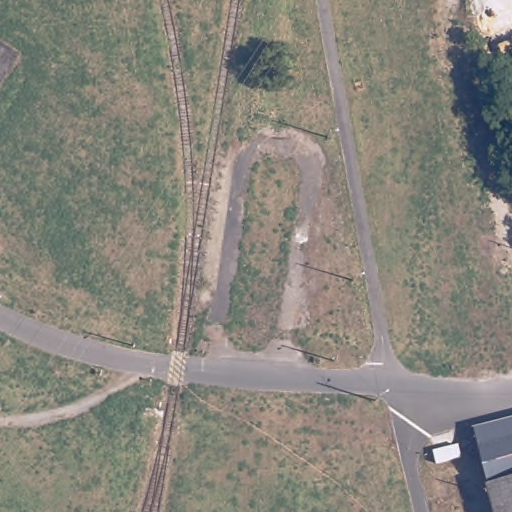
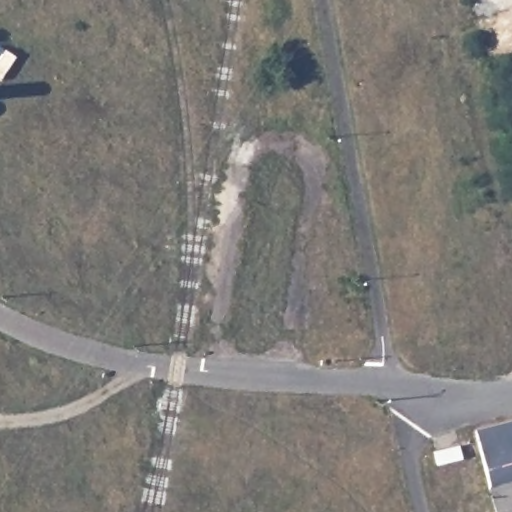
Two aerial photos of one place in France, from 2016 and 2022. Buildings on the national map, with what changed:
unchanged [(475,431),(512,421),(512,512),(496,512),(475,431)]

